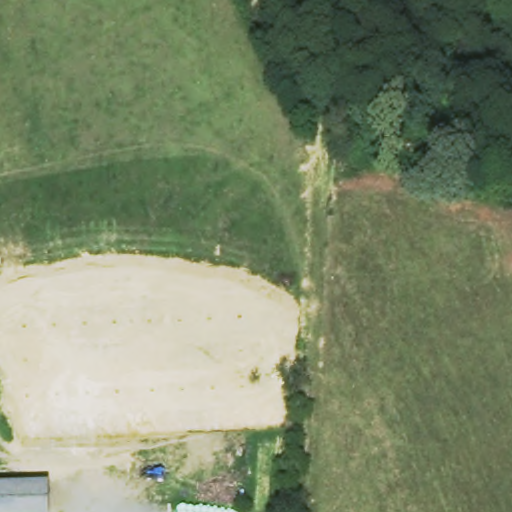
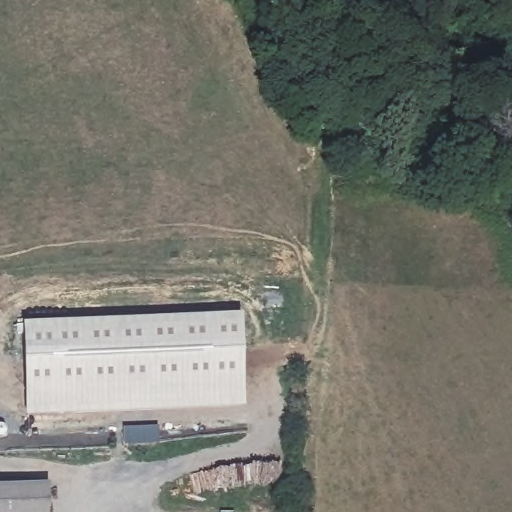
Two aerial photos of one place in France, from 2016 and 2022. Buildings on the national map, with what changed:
new [(241,312),(246,382),(30,396),(26,326),(241,312)]
new [(246,382),(247,403),(32,417),(30,396),(246,382)]
unchanged [(51,488),(50,512),(0,512),(0,490),(51,488)]

